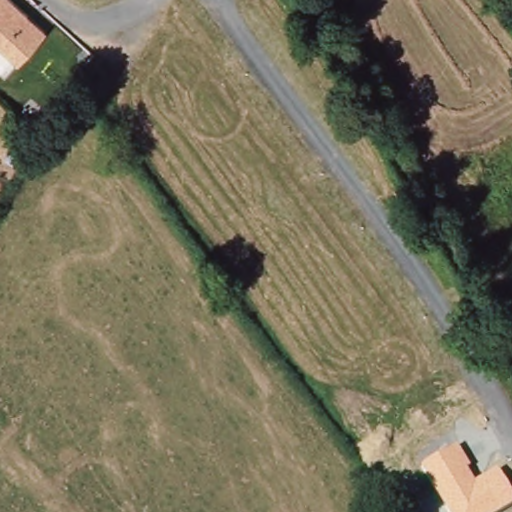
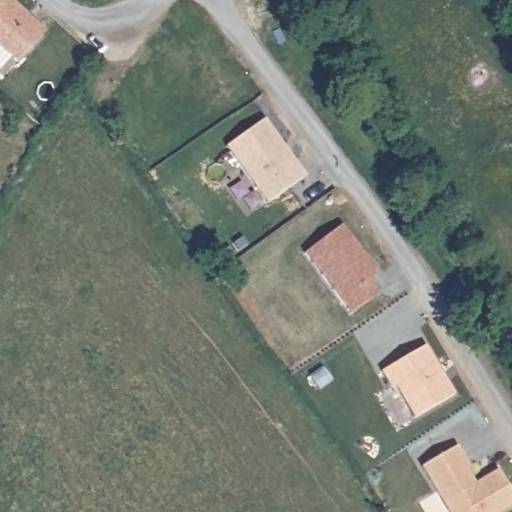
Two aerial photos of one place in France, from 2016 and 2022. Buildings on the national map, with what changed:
unchanged [(46,32),(16,65),(0,49),(0,0),(11,0),(46,32)]
new [(266,203),(225,145),(264,116),(305,174),(266,203)]
new [(304,252),(342,225),(377,271),(370,277),(380,290),(349,312),(304,252)]
new [(412,417),(394,385),(390,387),(380,370),(425,346),(453,393),(412,417)]
unchanged [(468,470),(476,482),(497,469),(512,493),(512,507),(504,512),(449,512),(422,466),(457,443),(471,467),(468,470)]

